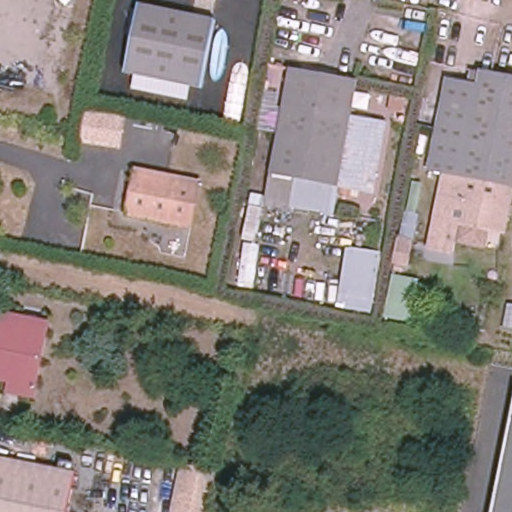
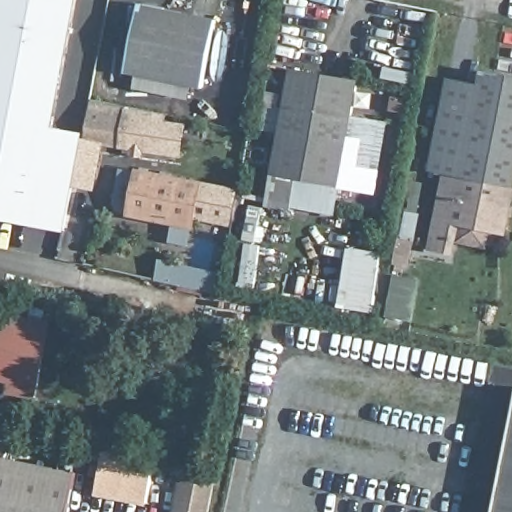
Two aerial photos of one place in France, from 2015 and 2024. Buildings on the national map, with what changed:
new [(78,0),(54,129),(84,134),(84,141),(104,146),(96,194),(74,189),(65,234),(0,222),(0,0),(78,0)]
unchanged [(202,88),(125,72),(140,5),(216,20),(202,88)]
unchanged [(291,69),(357,81),(352,116),(386,122),(374,192),(341,186),(272,173),(291,69)]
unchanged [(452,252),(430,247),(445,172),(428,169),(447,78),(478,84),(481,71),(512,77),(512,197),(505,233),(491,230),(487,249),(455,243),(452,252)]
new [(145,154),(144,158),(130,155),(130,151),(104,146),(84,141),(94,101),(168,115),(167,121),(187,125),(181,159),(145,154)]
demolished [(75,144),(82,105),(129,112),(121,151),(75,144)]
unchanged [(191,226),(130,214),(139,172),(200,184),(191,226)]
unchanged [(335,215),(291,207),(291,211),(266,206),(272,173),(341,186),(335,215)]
new [(231,225),(199,218),(206,181),(238,188),(231,225)]
new [(381,251),(371,311),(338,306),(348,245),(381,251)]
new [(154,281),(159,260),(220,273),(216,294),(154,281)]
unchanged [(421,278),(411,325),(381,320),(392,272),(421,278)]
unchanged [(7,393),(10,382),(0,381),(0,312),(51,322),(49,331),(38,387),(36,398),(7,393)]
unchanged [(512,419),(512,512),(493,512),(512,419)]
unchanged [(76,473),(68,512),(0,512),(0,458),(76,473)]
new [(94,496),(100,463),(153,473),(147,506),(94,496)]
unchanged [(210,512),(171,512),(182,464),(218,471),(210,512)]

